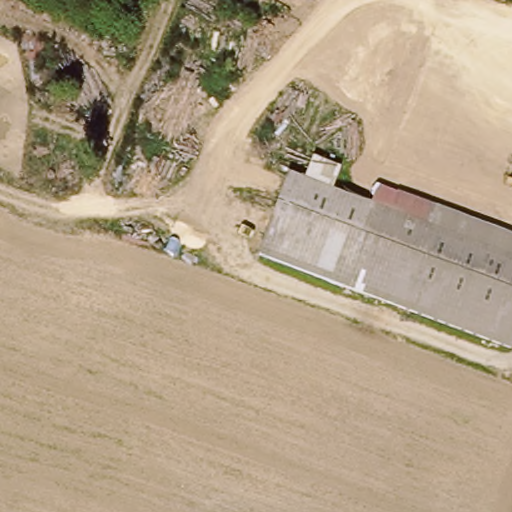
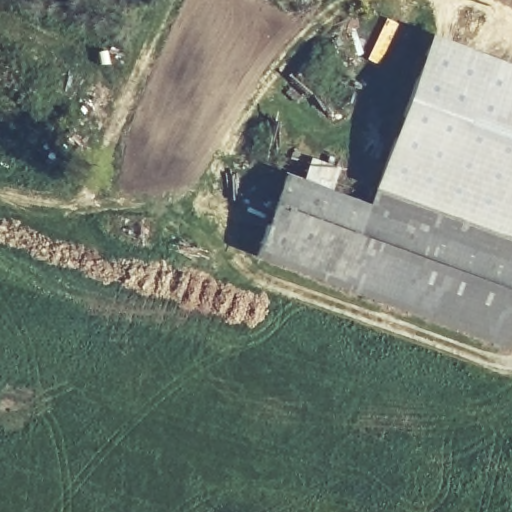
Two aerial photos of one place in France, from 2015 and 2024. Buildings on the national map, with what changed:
new [(432,35),(512,64),(512,255),(372,205),(376,189),(432,35)]
unchanged [(512,342),(510,346),(256,256),(285,175),(512,255),(512,342)]

